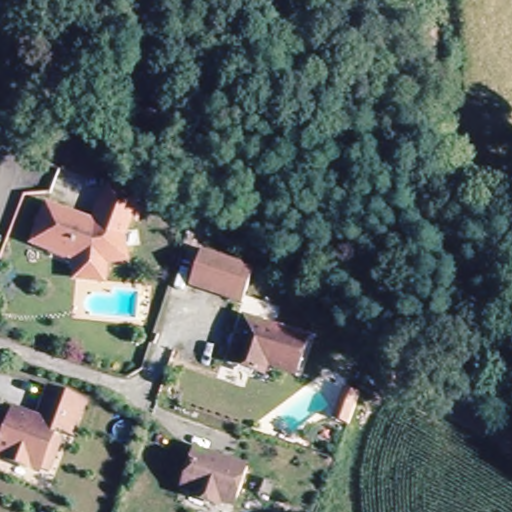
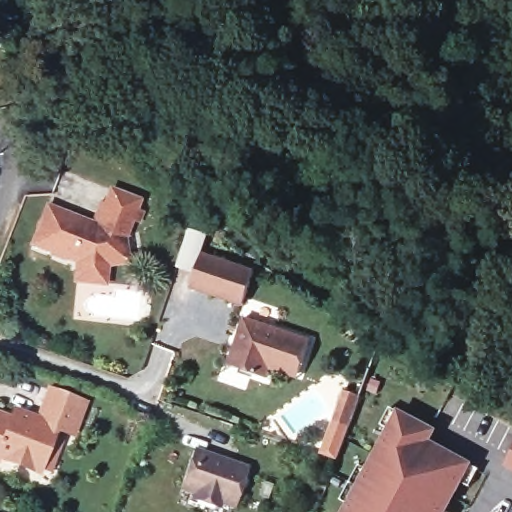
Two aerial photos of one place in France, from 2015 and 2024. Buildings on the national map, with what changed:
unchanged [(77,263),(78,257),(33,240),(48,202),(93,219),(101,199),(105,201),(112,186),(140,196),(136,206),(142,208),(139,216),(133,214),(125,234),(129,257),(108,261),(107,267),(106,279),(76,276),(77,263)]
unchanged [(242,306),(192,288),(204,255),(254,272),(242,306)]
unchanged [(270,368),(266,377),(252,372),(229,365),(245,318),(310,341),(302,363),(298,378),(270,368)]
unchanged [(50,470),(42,467),(40,472),(1,457),(0,458),(0,414),(12,419),(15,410),(39,419),(50,390),(85,403),(74,435),(57,428),(53,440),(61,443),(50,470)]
new [(323,453),(335,422),(343,401),(346,392),(361,397),(358,406),(350,427),(338,460),(323,453)]
demolished [(350,427),(335,422),(343,401),(358,406),(350,427)]
new [(434,442),(474,462),(446,512),(343,512),(400,410),(440,431),(434,442)]
unchanged [(194,498),(196,493),(184,489),(197,451),(247,468),(234,507),(221,502),(220,507),(194,498)]
new [(512,451),(512,470),(504,466),(512,451)]

